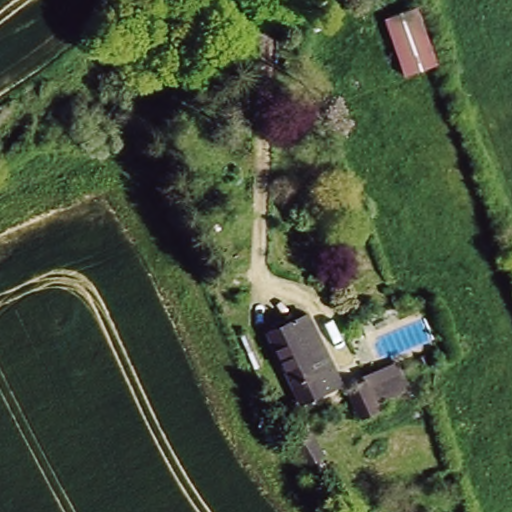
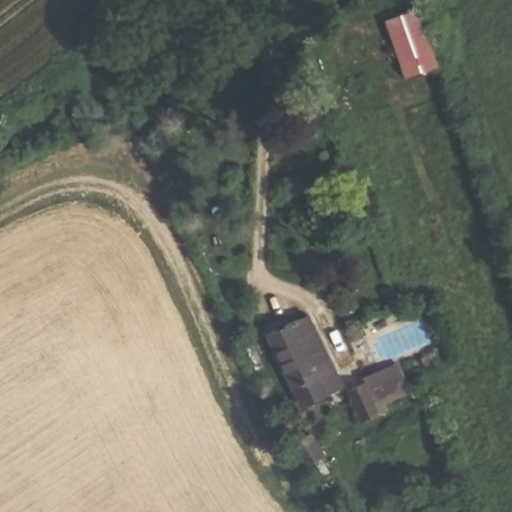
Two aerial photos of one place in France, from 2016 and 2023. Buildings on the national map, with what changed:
unchanged [(440,64),(409,76),(388,24),(420,12),(440,64)]
unchanged [(342,384),(302,402),(267,327),(307,309),(342,384)]
unchanged [(377,407),(360,415),(347,385),(363,378),(377,407)]
unchanged [(304,464),(292,444),(310,434),(322,454),(304,464)]

